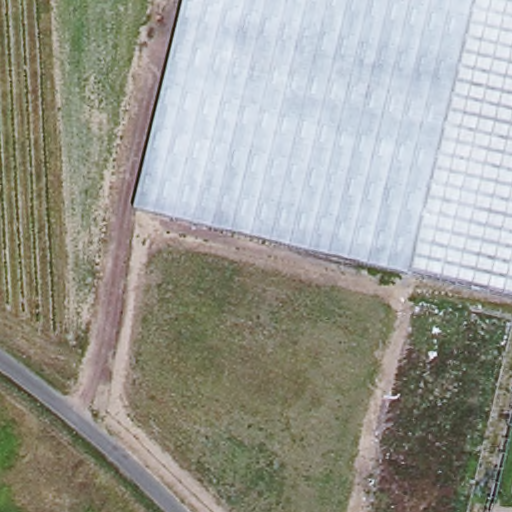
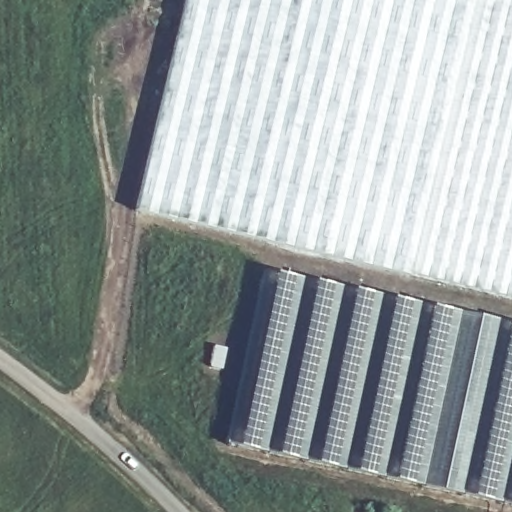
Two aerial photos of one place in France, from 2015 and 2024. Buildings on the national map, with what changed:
unchanged [(119,205),(166,0),(512,0),(512,297),(119,205)]
new [(512,324),(512,504),(226,445),(264,270),(512,324)]

